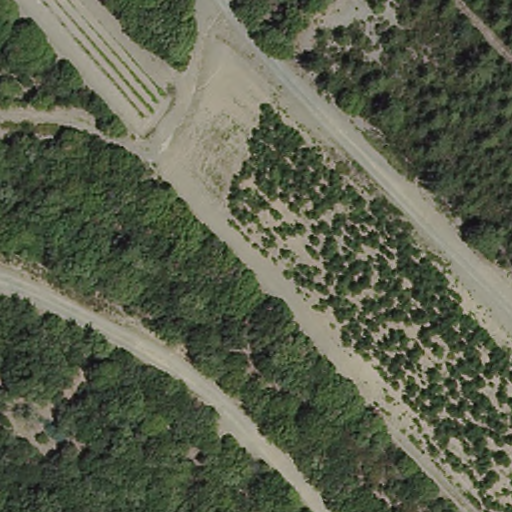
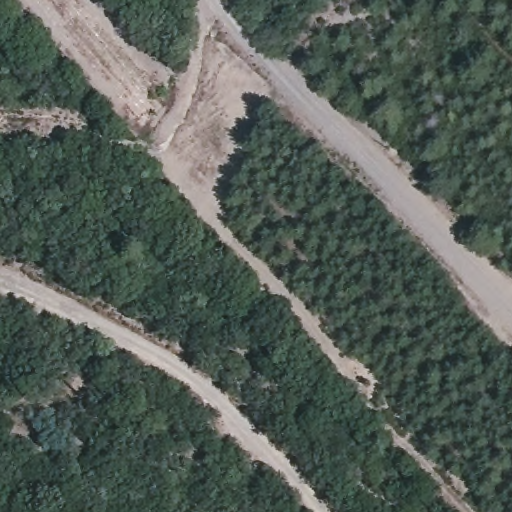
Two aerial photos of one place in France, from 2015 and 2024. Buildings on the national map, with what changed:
unchanged [(62,344),(94,373),(65,405),(33,377),(62,344)]

